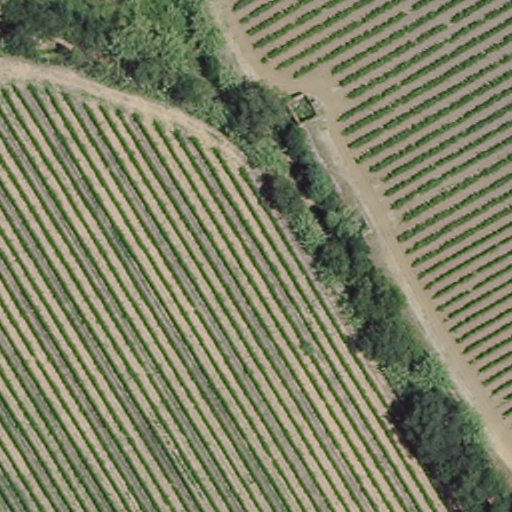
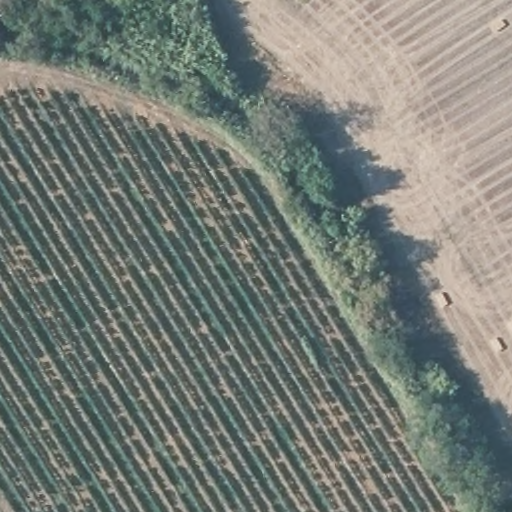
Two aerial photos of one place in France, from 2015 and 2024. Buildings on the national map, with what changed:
unchanged [(300,90),(311,116),(294,124),(280,99),(300,90)]
unchanged [(351,206),(362,226),(342,237),(329,217),(351,206)]

